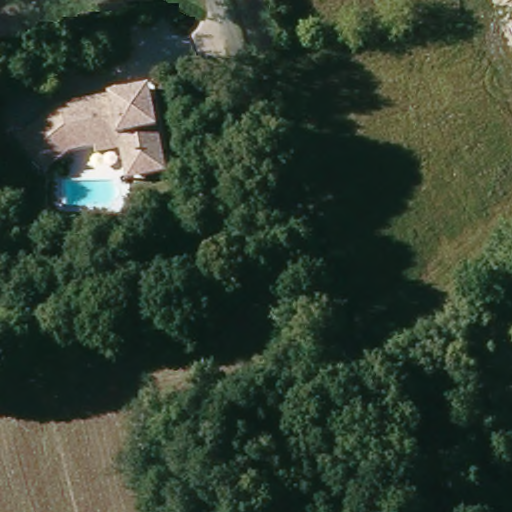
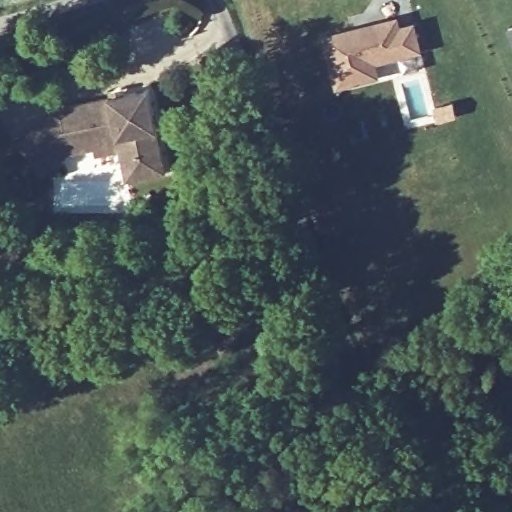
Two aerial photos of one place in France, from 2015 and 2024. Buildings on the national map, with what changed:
new [(360,29),(399,19),(401,28),(416,25),(423,51),(362,66),(366,80),(339,87),(326,37),(355,30),(360,29)]
unchanged [(125,164),(124,154),(101,159),(99,153),(74,158),(50,178),(23,148),(64,112),(151,93),(169,175),(146,180),(130,183),(125,164)]

